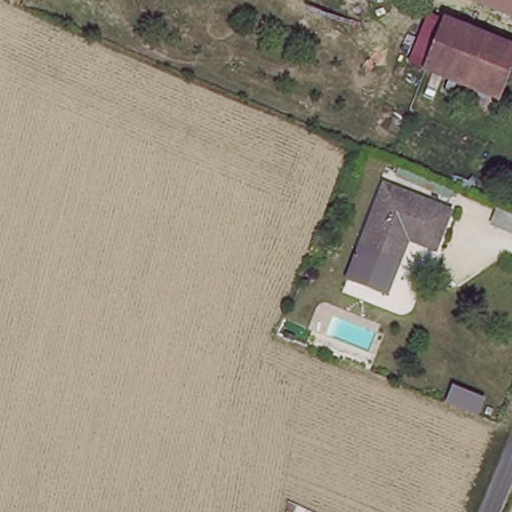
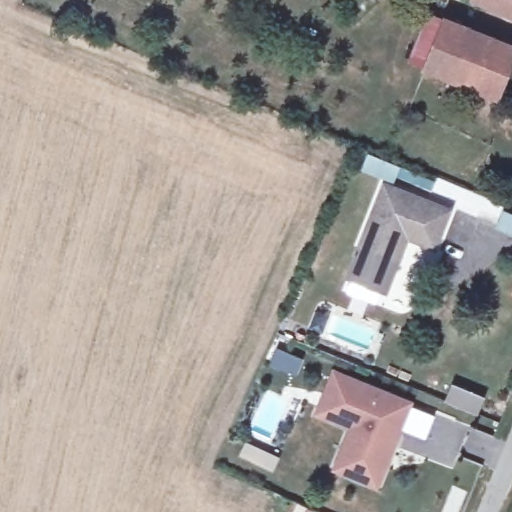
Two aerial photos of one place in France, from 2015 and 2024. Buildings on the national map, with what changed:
unchanged [(479,0),(512,0),(512,14),(479,0)]
unchanged [(425,62),(444,16),(498,38),(479,85),(425,62)]
unchanged [(500,94),(479,85),(498,38),(512,43),(512,64),(500,94)]
unchanged [(433,249),(406,241),(388,289),(345,275),(383,181),(451,205),(433,249)]
new [(348,430),(313,416),(333,368),(414,402),(377,490),(331,472),(348,430)]
new [(459,394),(486,407),(478,425),(450,412),(459,394)]
new [(279,460),(274,471),(242,456),(248,444),(279,460)]

